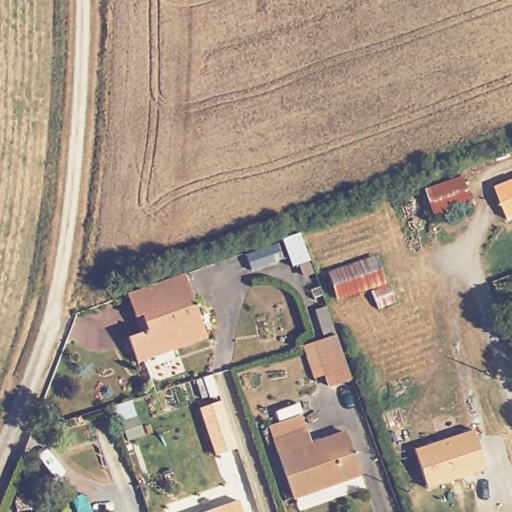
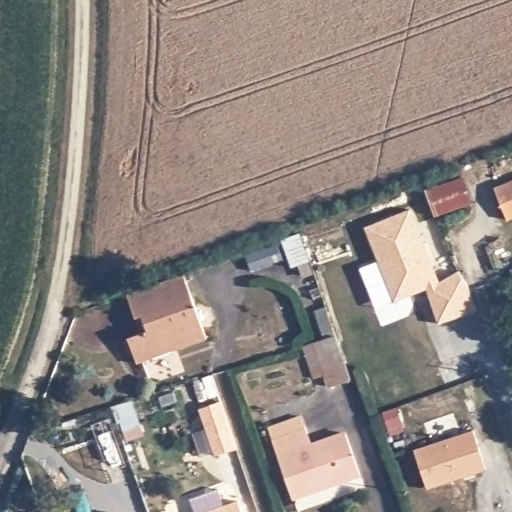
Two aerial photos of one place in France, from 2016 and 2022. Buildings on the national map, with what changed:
new [(463,177),(472,204),(435,217),(426,189),(463,177)]
unchanged [(494,191),(512,184),(512,219),(506,222),(494,191)]
new [(370,286),(387,279),(365,225),(410,207),(440,280),(457,269),(469,289),(476,311),(440,323),(427,289),(396,302),(378,309),(370,286)]
unchanged [(310,263),(292,269),(282,241),(300,234),(310,263)]
unchanged [(212,336),(140,363),(131,339),(152,330),(146,314),(137,318),(129,295),(188,273),(212,336)]
demolished [(396,302),(378,309),(370,286),(387,279),(396,302)]
unchanged [(348,377),(329,384),(312,340),(332,332),(348,377)]
unchanged [(430,491),(415,449),(473,429),(487,471),(430,491)]
unchanged [(349,441),(363,484),(295,508),(275,448),(308,437),(314,453),(349,441)]
unchanged [(246,501),(251,512),(217,512),(246,501)]

